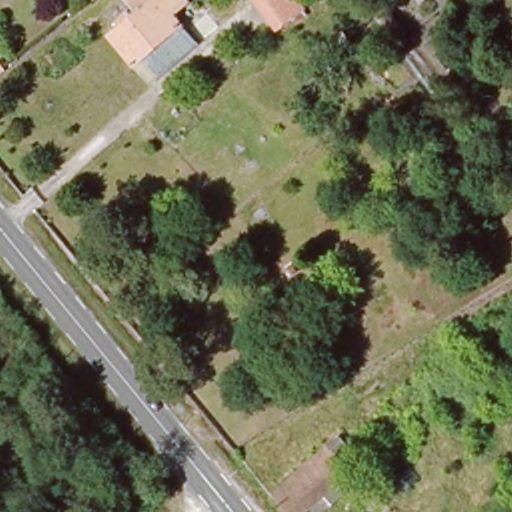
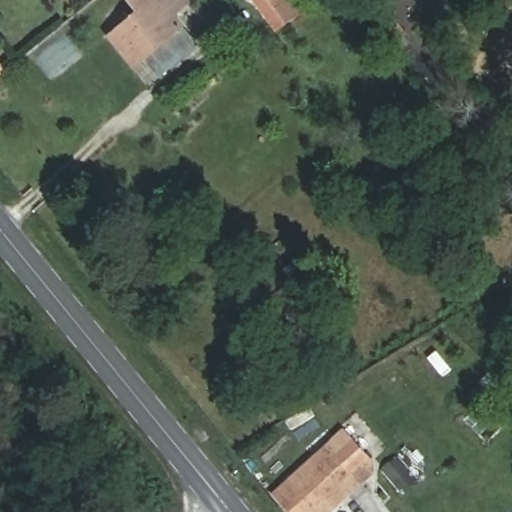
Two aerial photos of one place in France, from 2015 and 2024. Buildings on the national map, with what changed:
unchanged [(166,2),(176,16),(126,52),(102,20),(114,11),(130,0),(169,0),(166,2)]
unchanged [(303,9),(296,15),(282,24),(274,15),(261,0),(296,0),(303,9)]
unchanged [(126,52),(176,16),(193,39),(144,76),(126,52)]
unchanged [(0,61),(6,68),(0,74),(0,61)]
new [(328,512),(312,512),(286,512),(271,496),(326,442),(329,444),(340,433),(364,461),(361,480),(335,505),(328,512)]
demolished [(360,465),(336,485),(343,496),(330,507),(322,497),(306,511),(282,480),(336,435),(360,465)]
demolished [(386,461),(403,447),(424,473),(401,485),(386,461)]

